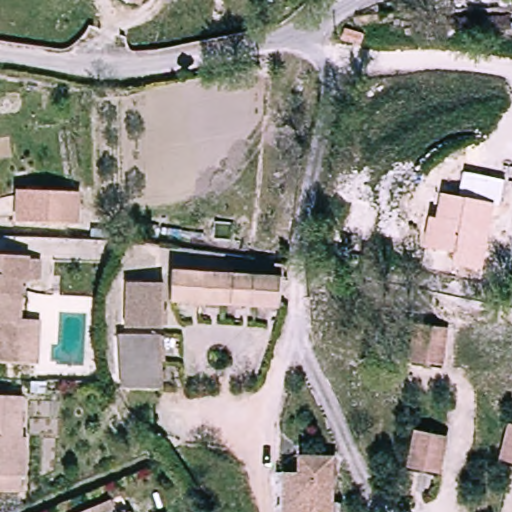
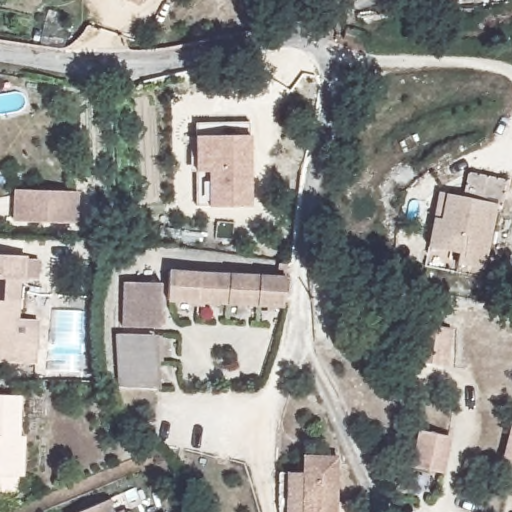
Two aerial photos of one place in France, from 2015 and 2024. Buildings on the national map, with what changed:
new [(195,124),(251,122),(251,136),(253,207),(208,207),(197,207),(196,172),(194,136),(195,124)]
unchanged [(459,265),(461,252),(429,247),(435,217),(442,219),(446,194),(462,197),(468,173),(508,182),(502,206),(496,205),(485,270),(459,265)]
unchanged [(16,222),(16,190),(78,189),(78,222),(16,222)]
unchanged [(0,362),(0,256),(21,256),(21,278),(16,278),(16,326),(39,326),(40,361),(17,362),(0,362)]
unchanged [(278,314),(165,296),(170,266),(282,285),(278,314)]
unchanged [(153,330),(118,325),(125,279),(159,284),(153,330)]
unchanged [(451,325),(447,365),(412,361),(416,322),(451,325)]
unchanged [(122,335),(160,340),(152,383),(115,378),(122,335)]
unchanged [(13,476),(12,492),(0,492),(0,396),(16,396),(15,436),(18,436),(17,476),(13,476)]
unchanged [(512,416),(512,464),(503,462),(512,416)]
unchanged [(452,436),(443,473),(409,465),(416,427),(452,436)]
unchanged [(314,476),(315,459),(348,460),(349,512),(297,512),(298,475),(314,476)]
unchanged [(286,512),(287,474),(298,475),(297,512),(286,512)]
unchanged [(110,512),(71,512),(105,497),(110,512)]
unchanged [(126,512),(119,512),(125,510),(126,512)]

